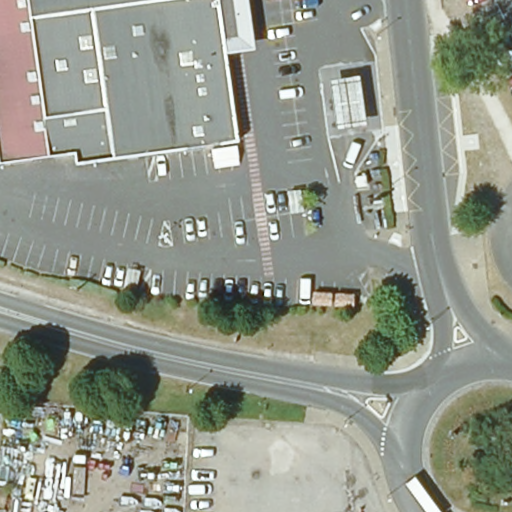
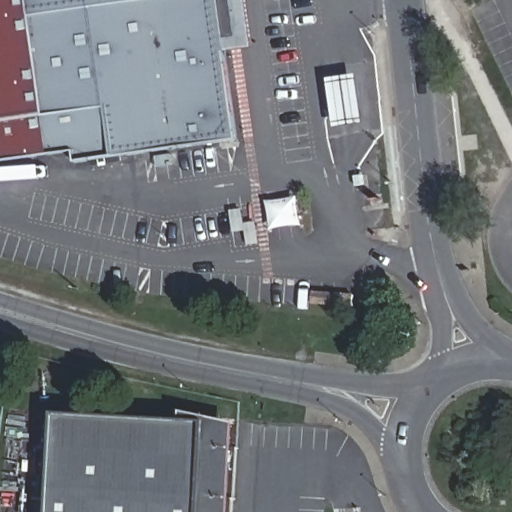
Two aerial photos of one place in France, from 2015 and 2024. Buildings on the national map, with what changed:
unchanged [(227,41),(240,142),(114,160),(75,165),(74,154),(67,155),(54,156),(46,158),(0,164),(0,0),(222,0),(223,6),(227,41)]
unchanged [(227,41),(223,6),(222,0),(240,0),(240,6),(244,40),(227,41)]
unchanged [(329,81),(357,78),(364,125),(336,129),(329,81)]
new [(56,412),(183,418),(182,409),(235,421),(230,512),(49,512),(56,412)]

